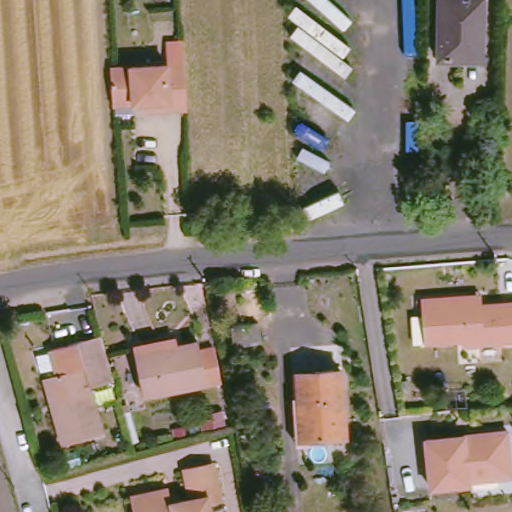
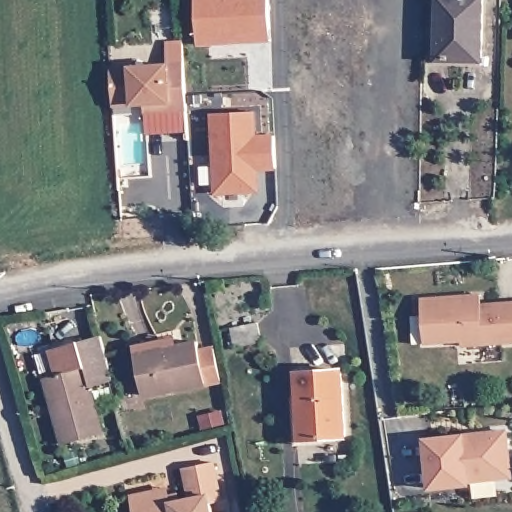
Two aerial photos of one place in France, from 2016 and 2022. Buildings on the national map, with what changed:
new [(246,38),(194,40),(192,0),(265,0),(267,26),(267,37),(246,38)]
unchanged [(473,52),(473,59),(443,58),(444,0),(484,0),(483,52),(473,52)]
unchanged [(145,112),(133,113),(132,102),(113,104),(110,67),(111,67),(181,62),(184,95),(186,118),(157,120),(146,120),(145,112)]
new [(210,115),(252,112),(254,137),(273,136),(275,169),(256,170),(251,175),(253,192),(215,194),(210,115)]
unchanged [(461,337),(424,340),(421,295),(470,293),(480,292),(481,301),(512,300),(512,339),(461,342),(461,337)]
unchanged [(95,387),(106,430),(69,440),(60,407),(66,405),(53,354),(108,339),(120,381),(95,387)]
unchanged [(203,356),(219,353),(219,356),(224,383),(208,386),(147,396),(139,349),(177,342),(179,349),(201,346),(203,356)]
unchanged [(294,395),(300,395),(299,371),(340,369),(344,433),(304,436),(298,436),(294,395)]
unchanged [(499,475),(467,478),(467,480),(429,484),(424,435),(463,432),(463,435),(476,433),(479,430),(506,428),(507,445),(510,473),(499,475)]
unchanged [(165,500),(166,504),(186,501),(180,470),(207,464),(215,504),(205,506),(206,512),(128,512),(128,508),(165,500)]

